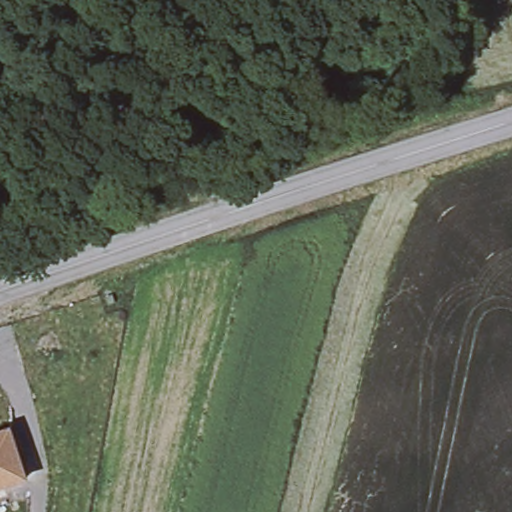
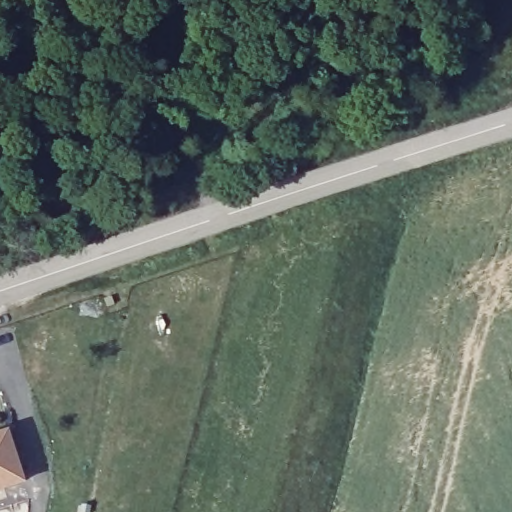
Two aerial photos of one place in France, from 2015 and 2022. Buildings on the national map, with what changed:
unchanged [(27,484),(0,492),(0,433),(8,430),(27,484)]

